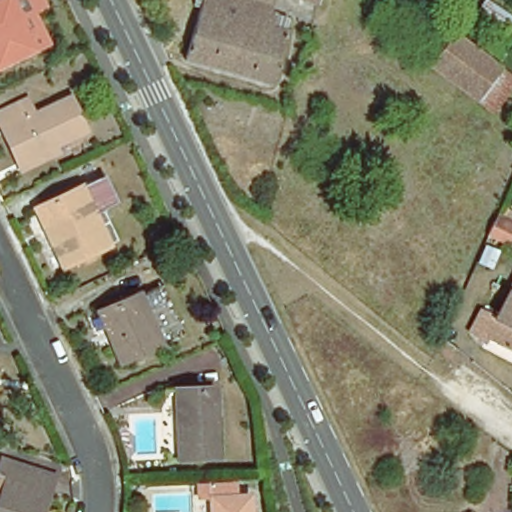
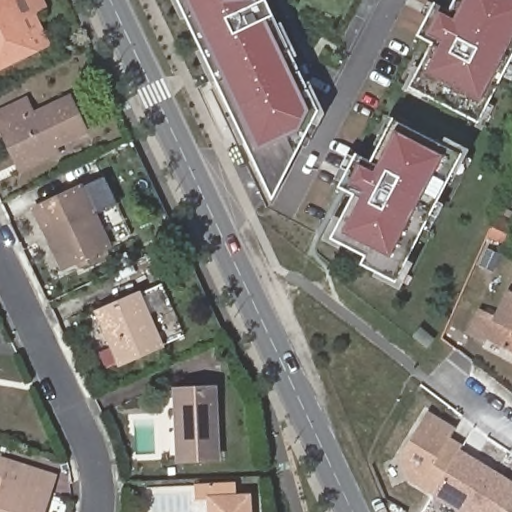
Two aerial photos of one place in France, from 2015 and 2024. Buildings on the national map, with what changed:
unchanged [(0,0),(37,0),(40,8),(55,39),(0,64),(0,0)]
new [(272,201),(177,0),(266,0),(265,0),(319,110),(272,201)]
demolished [(275,10),(280,12),(277,28),(290,31),(275,85),(190,61),(208,0),(277,0),(275,10)]
demolished [(321,5),(304,0),(322,0),(321,5)]
new [(478,124),(409,88),(431,43),(417,36),(433,1),(449,9),(454,0),(512,0),(512,57),(478,124)]
demolished [(512,14),(512,15),(505,26),(477,9),(482,0),(490,0),(512,14)]
demolished [(475,100),(430,68),(453,34),(498,68),(475,100)]
unchanged [(0,137),(0,105),(20,96),(27,110),(65,93),(80,128),(49,143),(54,151),(15,169),(0,137)]
new [(395,282),(360,264),(365,255),(331,238),(353,196),(338,187),(355,154),(371,162),(392,117),(461,154),(395,282)]
unchanged [(56,220),(47,200),(85,183),(112,242),(65,264),(51,232),(47,224),(56,220)]
unchanged [(512,228),(512,231),(505,247),(484,236),(492,218),(512,228)]
unchanged [(481,335),(478,340),(465,328),(477,304),(492,311),(512,273),(512,351),(481,335)]
unchanged [(141,284),(165,336),(125,354),(101,302),(141,284)]
unchanged [(224,381),(227,454),(188,455),(185,384),(224,381)]
new [(410,481),(400,457),(429,411),(456,428),(451,437),(463,445),(462,447),(433,493),(410,481)]
new [(433,493),(462,447),(512,480),(512,494),(501,512),(457,512),(431,495),(433,493)]
unchanged [(52,512),(4,512),(16,475),(6,472),(11,457),(65,475),(52,512)]
unchanged [(259,494),(260,512),(220,512),(219,496),(205,497),(204,479),(230,478),(231,496),(259,494)]
new [(501,512),(512,494),(512,512),(501,512)]

